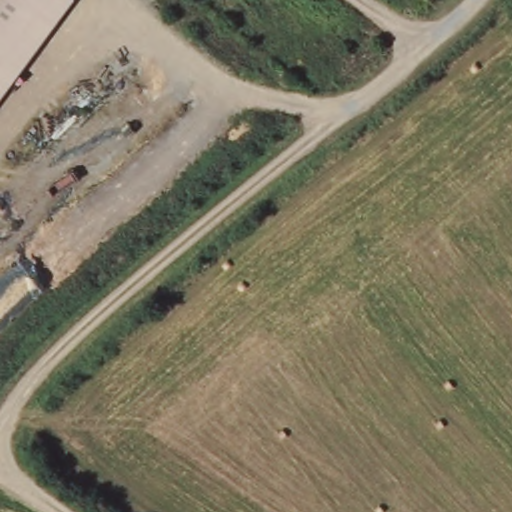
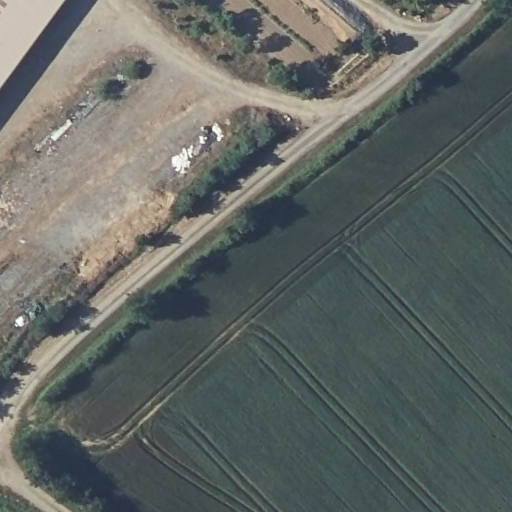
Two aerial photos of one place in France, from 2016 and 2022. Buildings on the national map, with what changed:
unchanged [(0,0),(69,0),(0,92),(0,0)]

